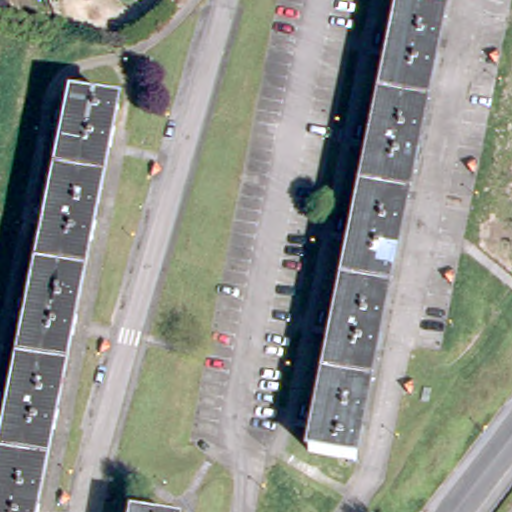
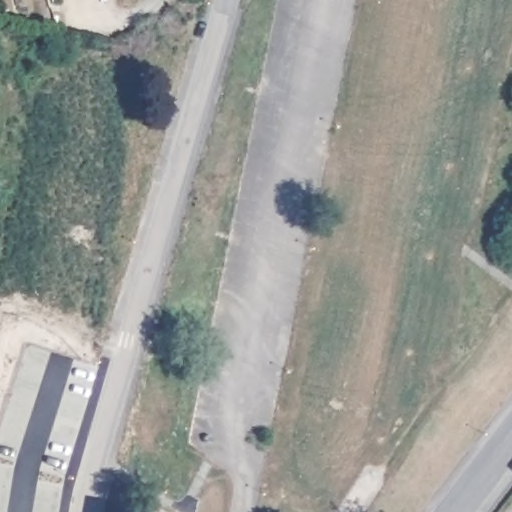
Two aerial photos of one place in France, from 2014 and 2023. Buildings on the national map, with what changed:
demolished [(358,457),(311,448),(316,421),(354,236),(401,0),(449,0),(358,457)]
demolished [(69,101),(117,111),(54,428),(37,512),(0,512),(0,446),(59,149),(69,101)]

